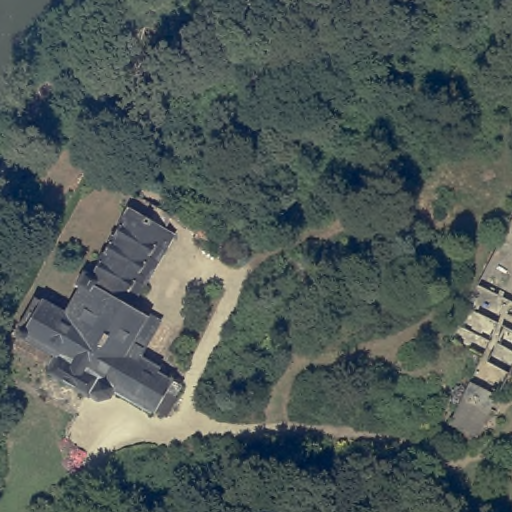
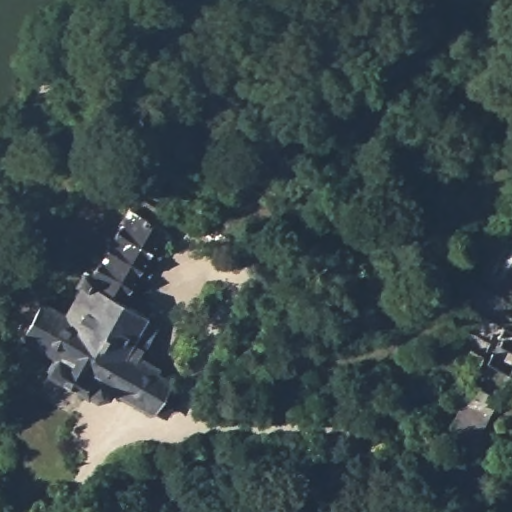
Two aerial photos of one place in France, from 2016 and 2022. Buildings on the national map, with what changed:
unchanged [(104,385),(94,400),(54,376),(62,360),(24,340),(44,305),(68,319),(87,284),(91,287),(134,214),(170,234),(127,307),(163,327),(141,367),(177,387),(160,417),(104,385)]

